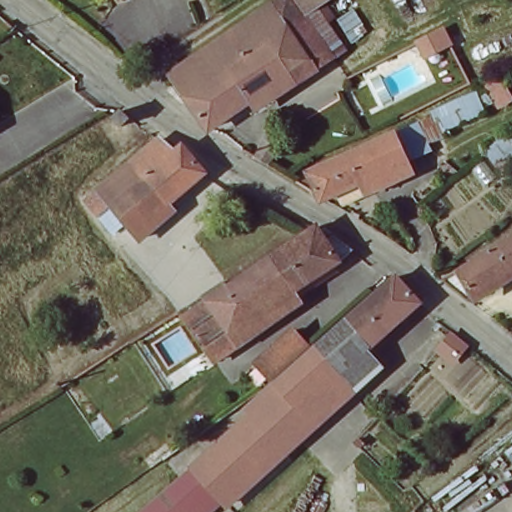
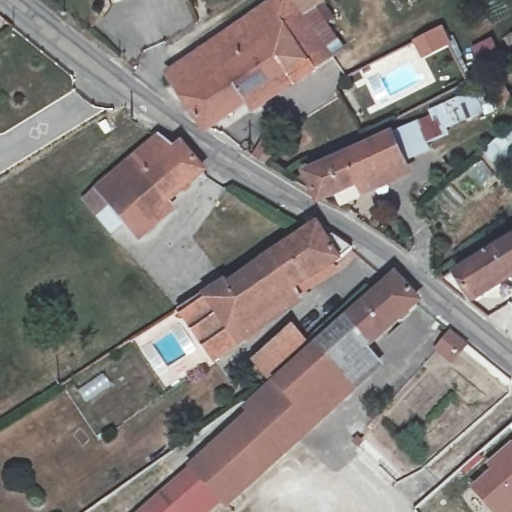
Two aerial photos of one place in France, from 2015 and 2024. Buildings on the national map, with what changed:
unchanged [(318,10),(329,28),(316,35),(334,65),(316,76),(309,64),(276,9),(289,0),(295,0),(306,19),(318,10)]
unchanged [(214,120),(206,114),(175,66),(276,9),(309,64),(214,120)]
unchanged [(334,190),(323,195),(308,171),(394,127),(412,119),(414,123),(428,117),(426,111),(479,92),(489,115),(451,129),(454,136),(429,147),(432,153),(411,162),(407,154),(356,179),(361,190),(339,201),(334,190)]
unchanged [(138,121),(126,129),(119,118),(133,110),(134,112),(138,121)]
unchanged [(509,186),(483,150),(501,137),(512,130),(512,184),(509,186)]
unchanged [(116,220),(111,224),(86,195),(100,185),(161,133),(172,146),(183,139),(203,166),(169,194),(174,200),(158,212),(136,229),(132,224),(125,229),(116,220)]
unchanged [(262,158),(269,146),(279,156),(273,165),(262,158)]
unchanged [(224,280),(228,285),(318,226),(325,235),(336,232),(356,250),(251,320),(259,332),(214,362),(187,321),(179,310),(224,280)]
unchanged [(470,293),(447,272),(512,232),(512,265),(470,293)]
unchanged [(371,350),(384,367),(225,510),(219,506),(213,512),(137,512),(181,471),(181,470),(244,413),(238,409),(268,383),(247,364),(291,325),(308,347),(395,273),(423,301),(371,350)]
unchanged [(458,358),(445,347),(456,335),(469,346),(458,358)]
unchanged [(205,371),(192,381),(182,368),(195,360),(205,371)]
new [(488,468),(483,462),(510,440),(512,442),(512,512),(488,512),(466,486),(488,468)]

